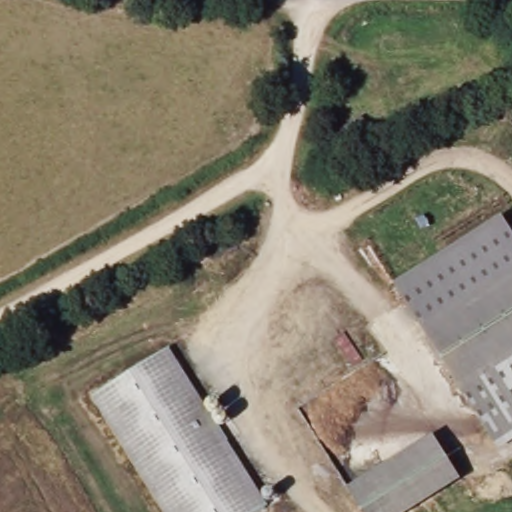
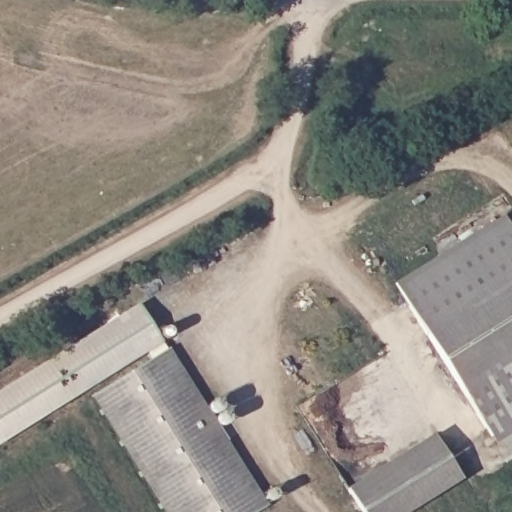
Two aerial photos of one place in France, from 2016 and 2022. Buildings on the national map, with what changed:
unchanged [(351,150),(357,169),(333,179),(317,142),(367,114),(377,136),(351,150)]
unchanged [(507,222),(512,230),(512,433),(497,442),(400,288),(507,222)]
new [(92,396),(89,390),(0,443),(0,390),(137,303),(166,349),(92,396)]
unchanged [(166,349),(265,507),(257,512),(166,512),(92,396),(166,349)]
unchanged [(350,485),(434,432),(461,476),(403,512),(366,512),(350,485)]

